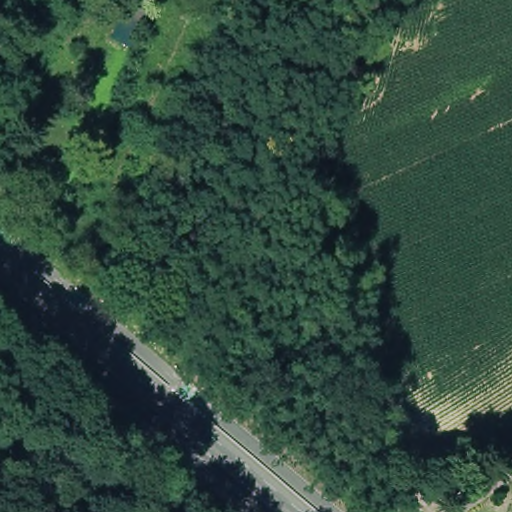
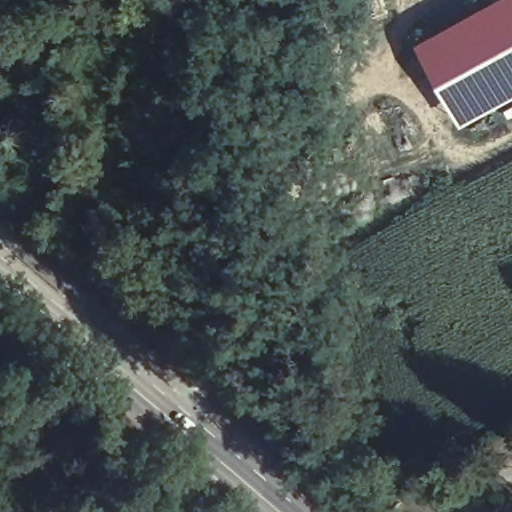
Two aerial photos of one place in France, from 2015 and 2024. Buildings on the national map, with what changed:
unchanged [(128,4),(151,14),(135,51),(112,41),(128,4)]
new [(512,46),(512,103),(470,126),(427,42),(490,9),(512,46)]

